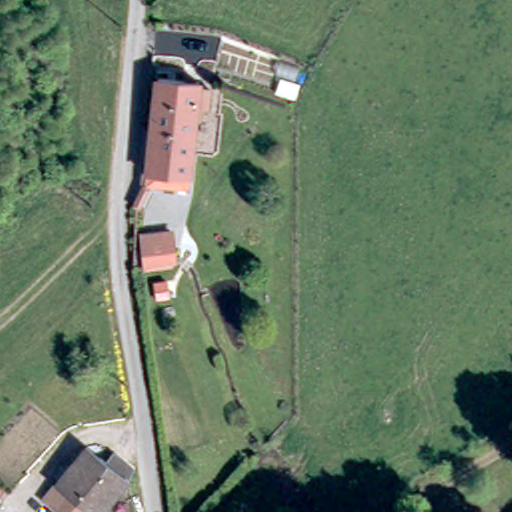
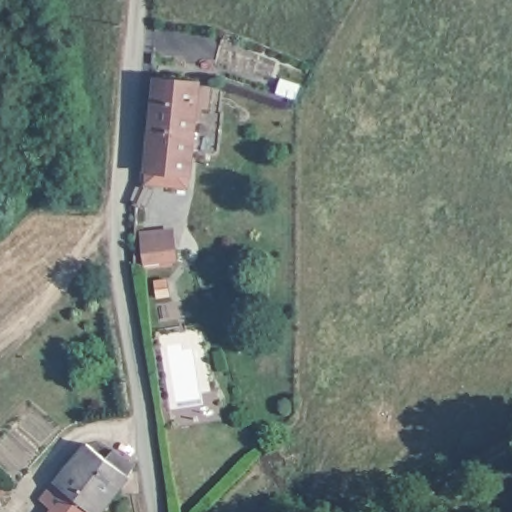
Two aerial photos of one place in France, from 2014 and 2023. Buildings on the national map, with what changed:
unchanged [(193,182),(152,178),(163,73),(204,78),(193,182)]
unchanged [(172,268),(142,272),(137,235),(167,231),(172,268)]
unchanged [(105,458),(112,448),(135,464),(100,512),(98,512),(87,505),(59,485),(62,480),(57,477),(66,464),(71,468),(86,445),(105,458)]
unchanged [(59,485),(87,505),(83,512),(55,512),(55,511),(45,505),(59,485)]
unchanged [(0,507),(0,489),(10,498),(0,507)]

